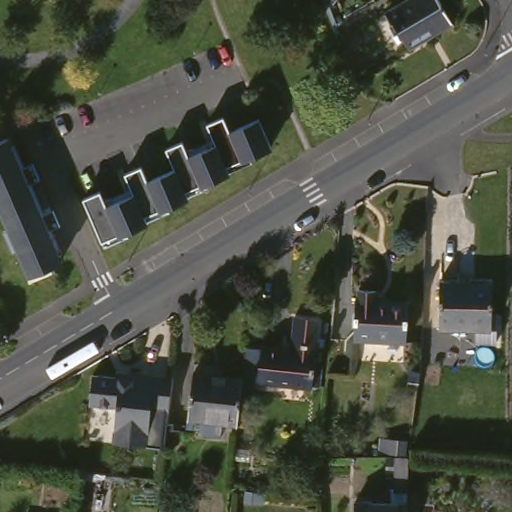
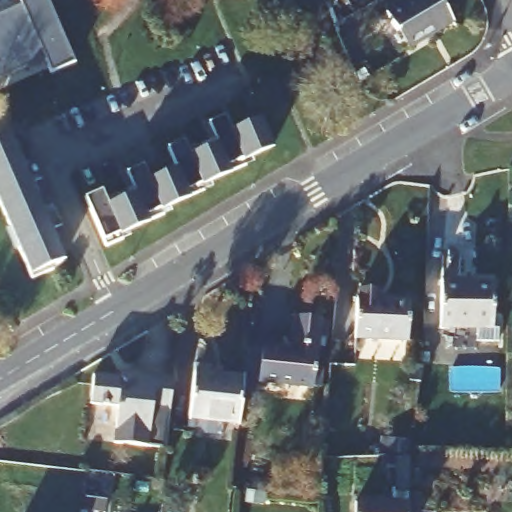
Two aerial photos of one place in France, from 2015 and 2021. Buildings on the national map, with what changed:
new [(22,3),(21,0),(50,0),(76,61),(51,72),(45,58),(0,78),(0,12),(22,3)]
unchanged [(325,0),(336,0),(326,4),(325,0)]
unchanged [(452,0),(461,17),(443,27),(441,25),(416,39),(408,25),(404,27),(400,19),(401,18),(395,9),(410,0),(452,0)]
unchanged [(107,186),(114,202),(141,190),(132,169),(148,162),(154,176),(181,165),(174,145),(190,137),(196,152),(217,142),(208,121),(230,111),(239,127),(268,113),(280,141),(237,161),(240,166),(220,176),(221,180),(151,212),(154,217),(111,237),(92,194),(107,186)]
unchanged [(20,132),(74,258),(39,273),(0,181),(0,141),(20,132)]
unchanged [(473,265),(500,265),(500,273),(501,321),(505,321),(505,330),(485,331),(485,320),(449,321),(448,274),(474,273),(473,265)]
unchanged [(385,288),(385,297),(416,297),(416,336),(371,336),(371,333),(362,333),(362,297),(365,297),(365,288),(385,288)]
unchanged [(270,338),(297,342),(301,307),(329,312),(320,381),(265,377),(266,374),(251,372),(255,341),(270,341),(270,338)]
unchanged [(147,366),(147,368),(182,372),(174,442),(122,437),(126,401),(100,397),(102,369),(140,373),(140,365),(147,366)]
unchanged [(246,417),(235,416),(195,412),(200,367),(240,372),(251,372),(246,417)]
unchanged [(363,498),(400,500),(400,487),(402,488),(403,452),(417,452),(416,512),(363,512),(363,498)]

